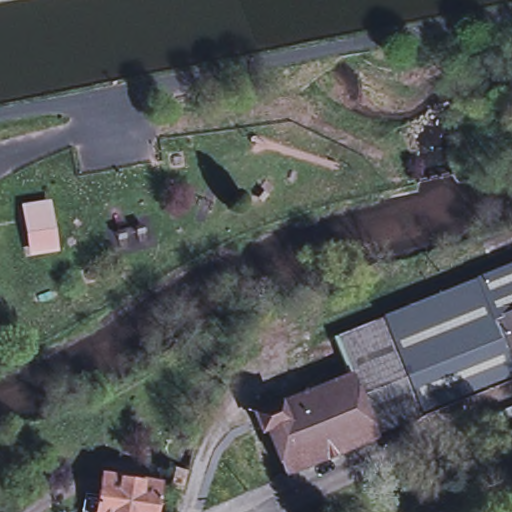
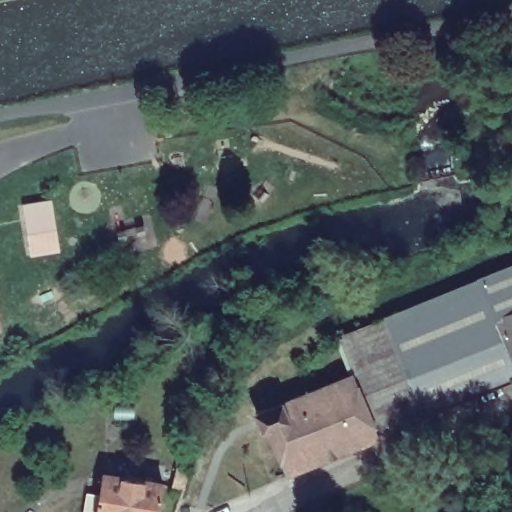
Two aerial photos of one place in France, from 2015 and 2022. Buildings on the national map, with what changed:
unchanged [(20,207),(55,202),(63,250),(29,259),(20,207)]
unchanged [(512,378),(474,282),(512,267),(512,378)]
unchanged [(512,378),(512,384),(376,437),(336,336),(474,282),(512,378)]
unchanged [(336,336),(376,437),(285,474),(267,429),(263,431),(259,430),(254,415),(256,412),(259,411),(245,373),(336,336)]
unchanged [(187,467),(181,487),(168,483),(174,463),(187,467)]
unchanged [(156,512),(94,512),(100,473),(160,482),(156,512)]

